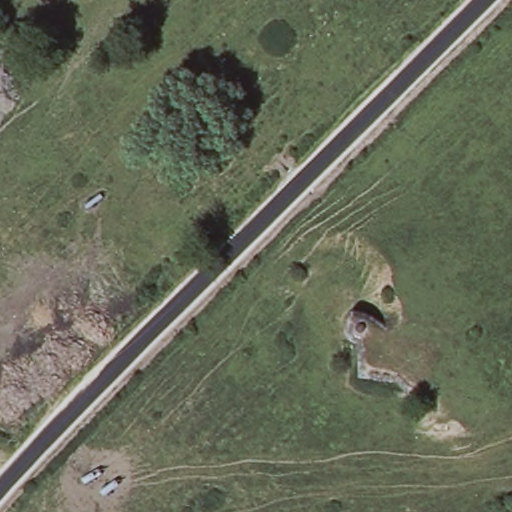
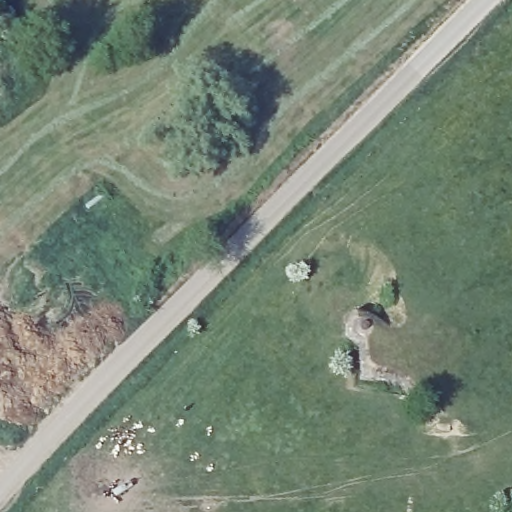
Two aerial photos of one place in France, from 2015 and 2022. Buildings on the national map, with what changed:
unchanged [(454,428),(441,428),(441,422),(454,425),(454,428)]

